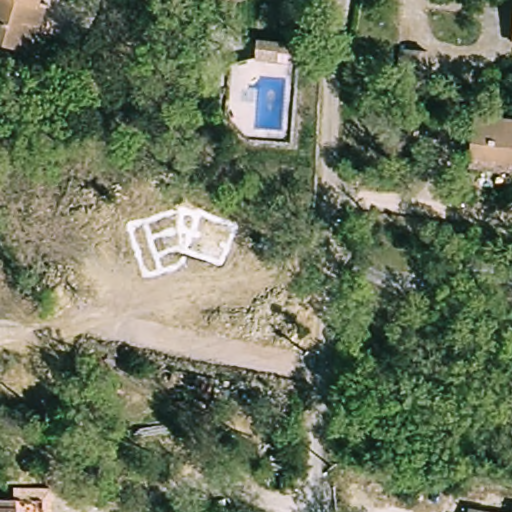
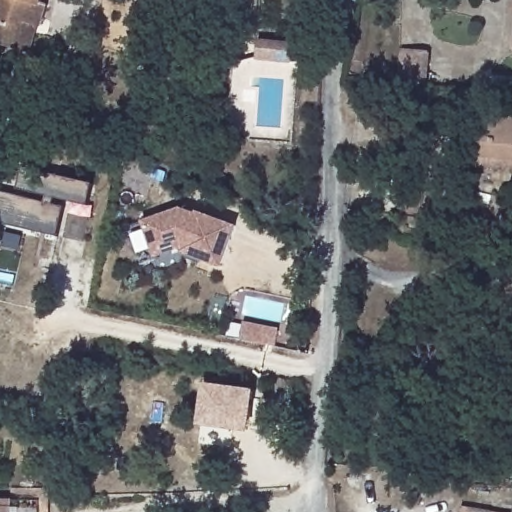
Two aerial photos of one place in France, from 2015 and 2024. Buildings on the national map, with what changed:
unchanged [(0,42),(0,0),(47,0),(53,4),(45,26),(35,53),(18,48),(0,42)]
demolished [(504,0),(512,0),(512,38),(498,35),(504,0)]
unchanged [(291,58),(253,56),(253,38),(292,39),(291,58)]
unchanged [(403,89),(406,54),(432,56),(429,91),(403,89)]
unchanged [(469,111),(512,116),(512,171),(499,169),(465,166),(469,111)]
new [(93,185),(87,206),(55,197),(53,204),(65,207),(57,236),(0,223),(0,194),(44,204),(46,195),(17,188),(21,169),(93,185)]
new [(221,266),(175,249),(155,257),(142,221),(181,207),(195,212),(202,210),(236,225),(221,266)]
new [(245,319),(279,325),(276,342),(241,336),(245,319)]
new [(257,389),(250,432),(197,424),(204,383),(257,389)]
unchanged [(5,498),(32,497),(33,512),(0,512),(0,498),(5,498)]

